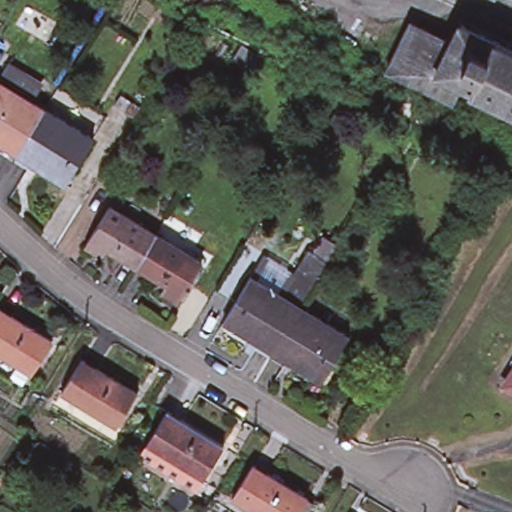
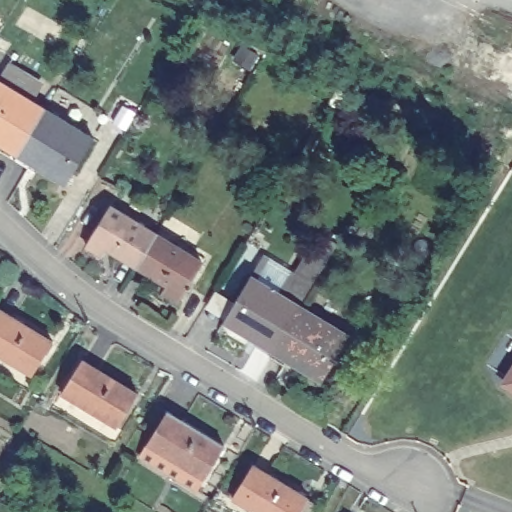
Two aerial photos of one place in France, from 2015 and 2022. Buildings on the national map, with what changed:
demolished [(455,109),(398,81),(425,30),(460,46),(443,80),(464,90),(455,109)]
demolished [(512,53),(512,114),(464,90),(443,80),(460,46),(468,31),(512,53)]
unchanged [(0,148),(0,86),(45,112),(17,158),(0,148)]
unchanged [(45,112),(92,141),(66,186),(17,158),(45,112)]
unchanged [(108,249),(103,256),(87,246),(110,207),(158,235),(139,266),(108,249)]
unchanged [(203,263),(181,302),(165,292),(169,285),(139,266),(158,235),(203,263)]
unchanged [(226,325),(253,280),(303,310),(275,355),(226,325)]
unchanged [(352,338),(325,383),(275,355),(303,310),(352,338)]
unchanged [(52,345),(31,377),(0,359),(0,313),(52,345)]
unchanged [(137,396),(116,430),(60,396),(81,363),(137,396)]
unchanged [(512,369),(512,389),(502,383),(512,369)]
unchanged [(139,458),(145,449),(167,415),(222,448),(201,482),(200,482),(193,492),(139,458)]
unchanged [(299,512),(249,512),(230,500),(252,467),(306,501),(299,512)]

